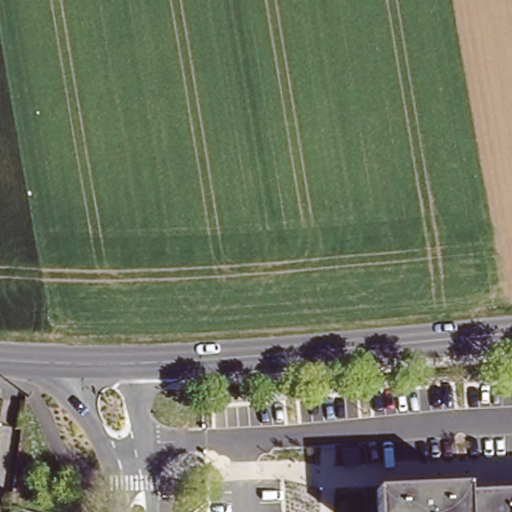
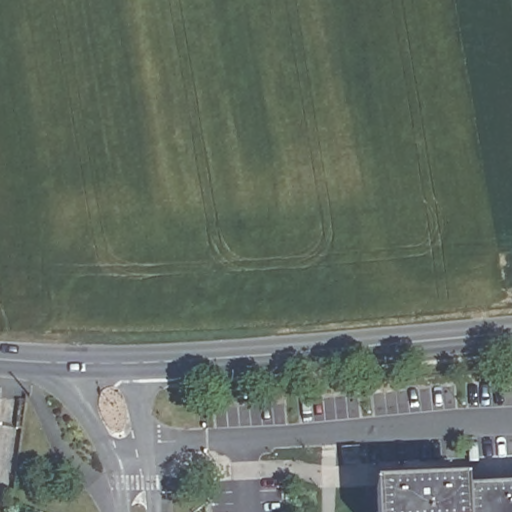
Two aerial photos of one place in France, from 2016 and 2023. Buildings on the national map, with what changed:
unchanged [(459,484),(459,493),(512,489),(512,512),(369,512),(368,490),(459,484)]

